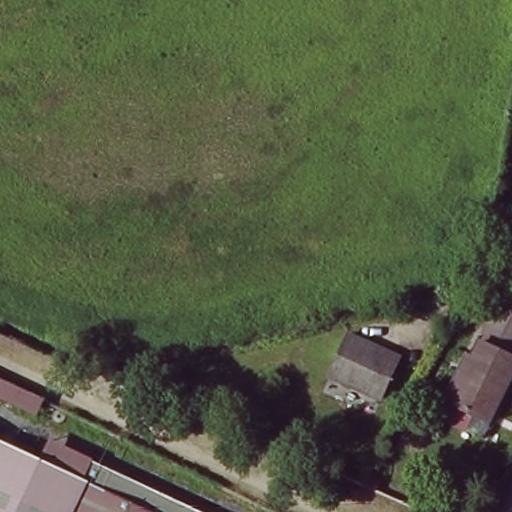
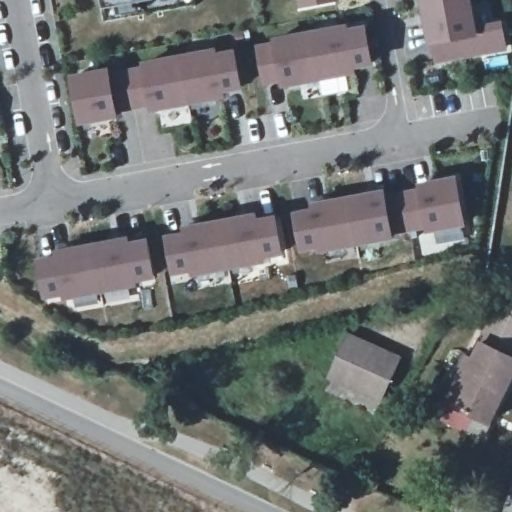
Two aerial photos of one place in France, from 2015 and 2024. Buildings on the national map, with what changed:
new [(103,25),(98,0),(193,0),(195,8),(103,25)]
new [(298,0),(334,0),(299,6),(298,0)]
new [(422,0),(464,0),(423,7),(422,0)]
new [(499,24),(499,29),(503,48),(435,61),(432,42),(429,43),(423,7),(464,0),(467,0),(473,29),(499,24)]
new [(346,30),(346,35),(364,31),(371,66),(353,69),(354,74),(318,81),(310,37),(346,30)]
new [(276,48),(274,43),(310,37),(318,81),(283,87),(281,82),(264,85),(257,51),(276,48)]
new [(180,62),(144,68),(143,60),(218,47),(219,51),(236,49),(243,87),(226,90),(228,96),(188,106),(180,62)]
new [(145,72),(144,68),(180,62),(188,106),(153,112),(151,107),(133,110),(127,76),(145,72)]
new [(108,75),(108,79),(127,76),(133,110),(115,114),(116,119),(80,125),(73,81),(108,75)]
new [(421,193),(420,188),(455,182),(464,226),(428,232),(427,228),(409,231),(403,197),(421,193)]
new [(383,195),(384,201),(403,197),(409,231),(391,235),(391,239),(356,246),(348,202),(383,195)]
new [(314,214),(313,208),(348,202),(356,246),(321,253),(319,248),(301,251),(295,217),(314,214)]
new [(256,219),(256,225),(274,222),(281,256),(263,259),(264,264),(228,270),(220,226),(256,219)]
new [(186,238),(184,232),(220,226),(228,270),(193,276),(192,272),(173,275),(168,241),(186,238)]
new [(128,243),(128,249),(146,245),(153,280),(135,283),(136,288),(100,294),(92,250),(128,243)]
new [(58,262),(56,257),(92,250),(100,294),(65,301),(64,296),(46,300),(39,265),(58,262)]
unchanged [(508,353),(481,340),(477,338),(492,306),(512,304),(512,344),(508,353)]
unchanged [(398,355),(379,397),(328,373),(347,331),(398,355)]
unchanged [(508,353),(512,355),(512,370),(488,421),(451,402),(441,397),(464,350),(474,355),(481,340),(508,353)]
unchanged [(0,440),(6,443),(81,478),(90,460),(161,492),(191,508),(200,512),(0,512),(0,440)]

